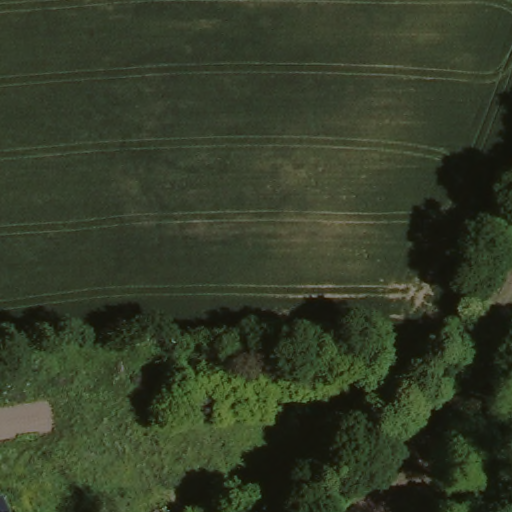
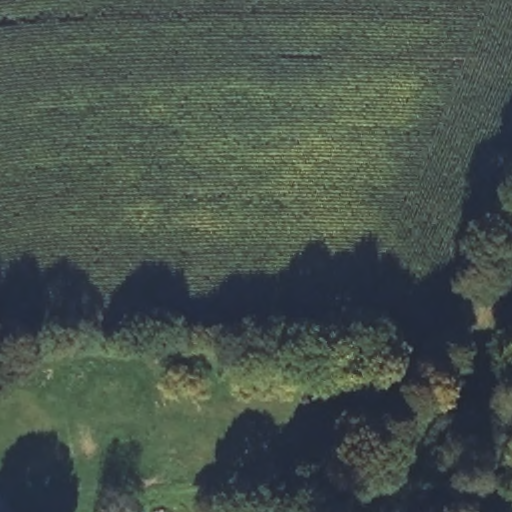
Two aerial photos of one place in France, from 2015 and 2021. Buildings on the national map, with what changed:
unchanged [(8,496),(13,512),(0,512),(0,499),(8,496)]

